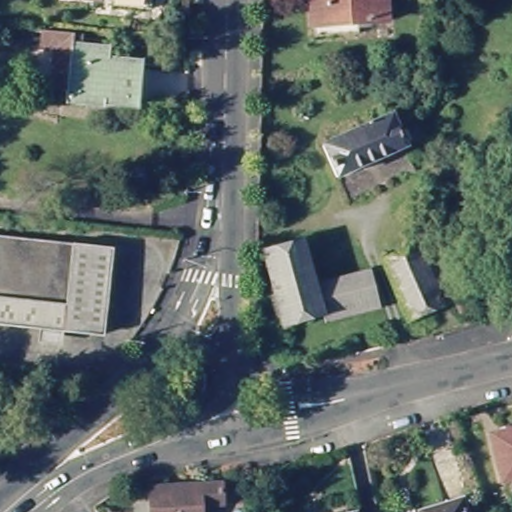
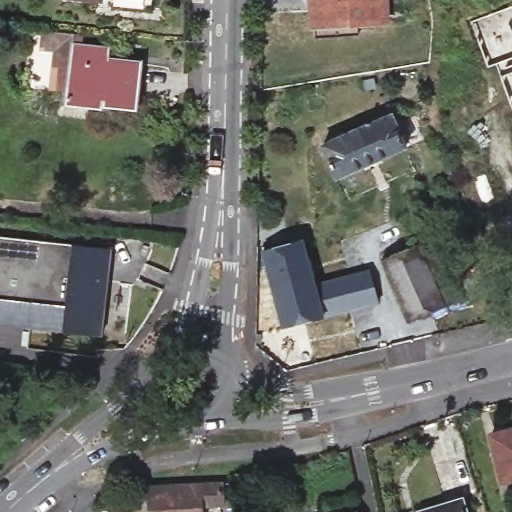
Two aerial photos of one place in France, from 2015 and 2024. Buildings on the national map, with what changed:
unchanged [(147,5),(108,0),(148,0),(147,5)]
unchanged [(313,0),(384,0),(385,24),(314,27),(313,0)]
new [(512,5),(512,60),(488,66),(473,20),(512,5)]
unchanged [(56,47),(41,45),(43,27),(74,31),(85,32),(84,42),(111,45),(109,56),(144,59),(139,100),(104,97),(104,99),(66,96),(67,87),(52,85),(56,47)]
new [(512,71),(512,110),(501,75),(512,71)]
unchanged [(335,178),(321,145),(391,115),(392,117),(405,147),(335,178)]
unchanged [(102,337),(0,326),(0,240),(113,252),(102,337)]
unchanged [(406,327),(378,266),(430,242),(431,245),(458,303),(406,327)]
unchanged [(267,256),(306,245),(318,289),(326,321),(288,332),(267,256)]
unchanged [(318,289),(374,275),(383,306),(326,321),(318,289)]
unchanged [(512,436),(512,480),(498,441),(512,436)]
unchanged [(216,483),(217,506),(196,506),(197,512),(146,512),(145,486),(216,483)]
unchanged [(474,512),(432,512),(470,500),(474,512)]

